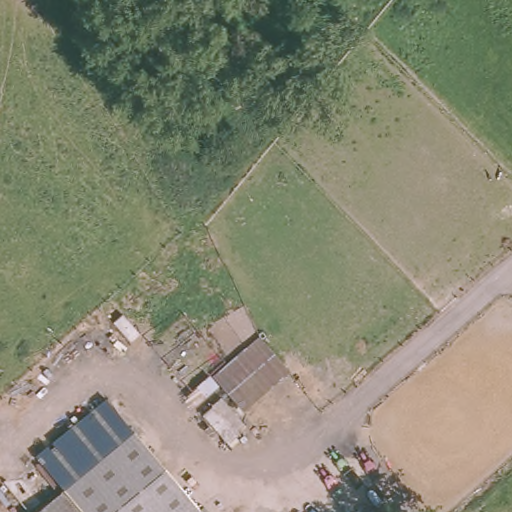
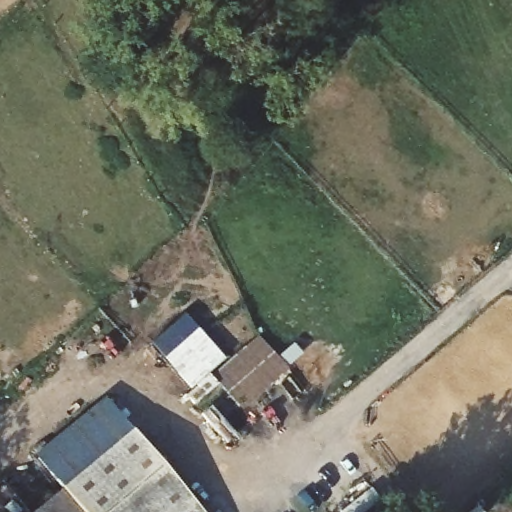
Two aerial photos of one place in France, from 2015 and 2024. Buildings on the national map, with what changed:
new [(218,385),(194,405),(185,396),(190,391),(151,344),(185,314),(225,360),(207,375),(218,385)]
unchanged [(290,368),(243,409),(214,376),(259,335),(290,368)]
unchanged [(65,494),(37,459),(107,399),(132,432),(65,494)]
unchanged [(204,512),(81,512),(65,494),(132,432),(204,512)]
unchanged [(60,498),(72,512),(44,512),(60,498)]

